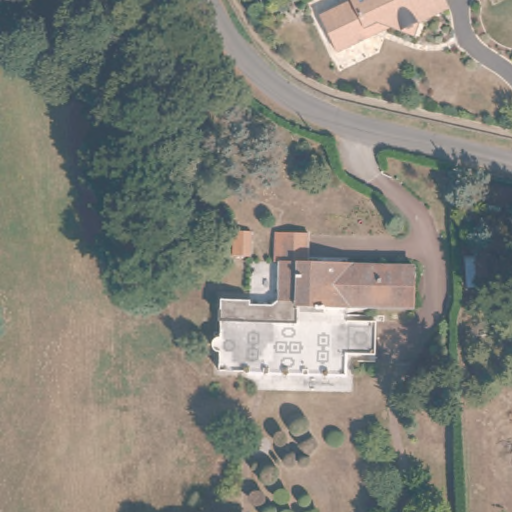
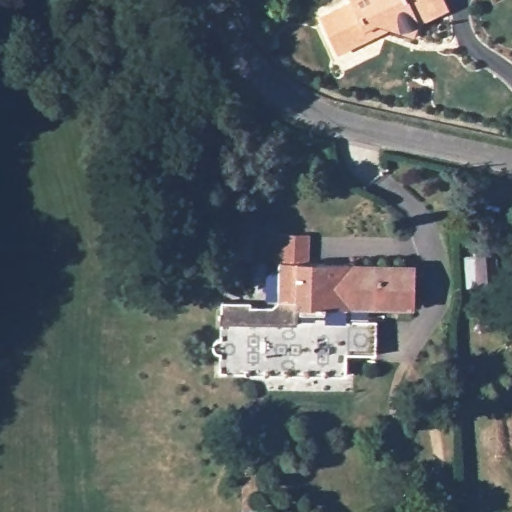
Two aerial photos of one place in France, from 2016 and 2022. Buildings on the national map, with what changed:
unchanged [(420,21),(414,36),(378,24),(373,35),(337,53),(321,18),(352,2),(351,0),(444,0),(448,9),(420,21)]
unchanged [(350,263),(350,267),(420,270),(420,308),(349,305),(349,321),(378,322),(376,359),(348,358),(348,373),(221,368),(222,345),(216,345),(217,335),(222,331),(224,293),(255,294),(255,300),(275,300),(280,295),(283,257),(278,257),(278,225),(308,225),(307,261),(350,263)]
unchanged [(234,236),(233,262),(215,262),(216,236),(234,236)]
unchanged [(497,266),(501,297),(482,299),(478,267),(497,266)]

